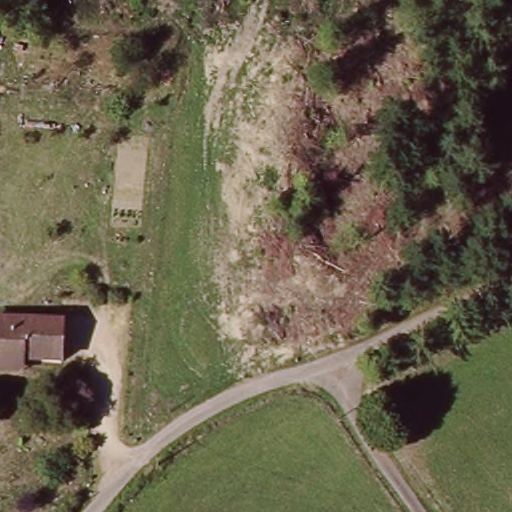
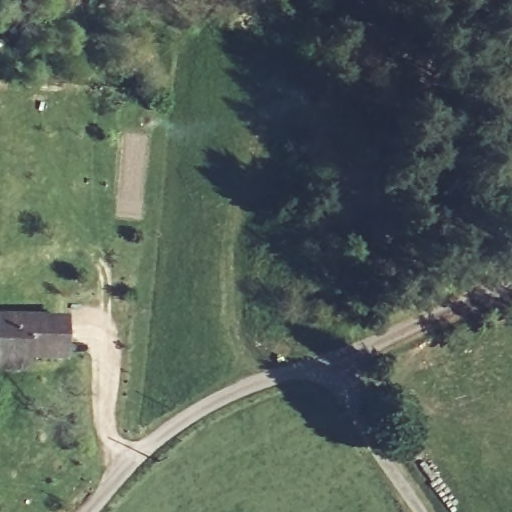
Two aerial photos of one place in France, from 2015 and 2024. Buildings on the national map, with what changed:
unchanged [(28,47),(25,81),(13,79),(17,46),(28,47)]
unchanged [(0,317),(62,318),(61,356),(25,356),(24,372),(0,370),(0,317)]

